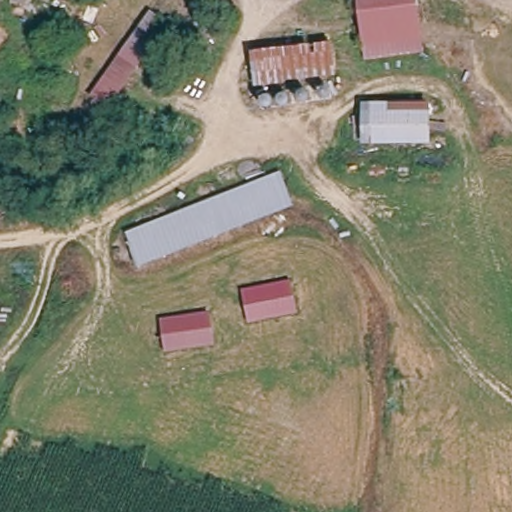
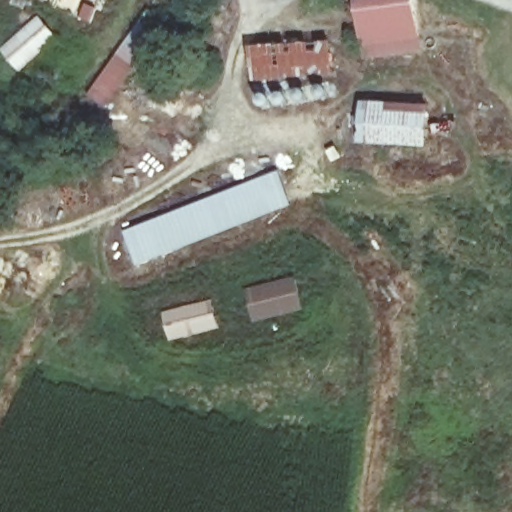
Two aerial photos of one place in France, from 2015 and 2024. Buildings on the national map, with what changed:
unchanged [(362,54),(359,0),(415,0),(418,50),(362,54)]
unchanged [(119,54),(150,9),(165,22),(139,70),(119,54)]
unchanged [(337,77),(255,89),(251,53),(333,41),(337,77)]
unchanged [(139,70),(110,113),(89,100),(119,54),(139,70)]
unchanged [(368,144),(368,102),(432,101),(434,144),(368,144)]
unchanged [(137,267),(126,232),(280,174),(294,205),(137,267)]
unchanged [(290,279),(297,314),(247,323),(241,289),(290,279)]
unchanged [(213,343),(164,352),(159,317),(207,311),(213,343)]

